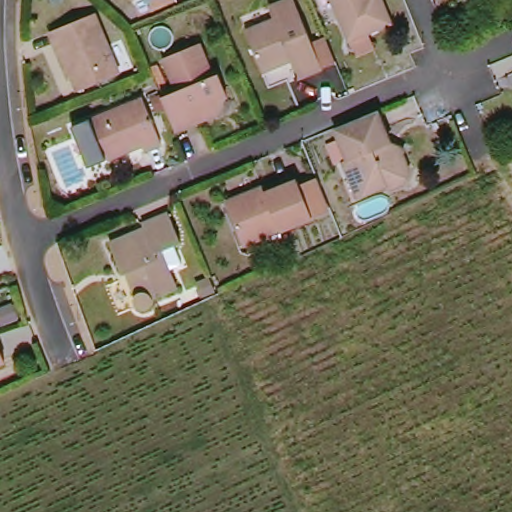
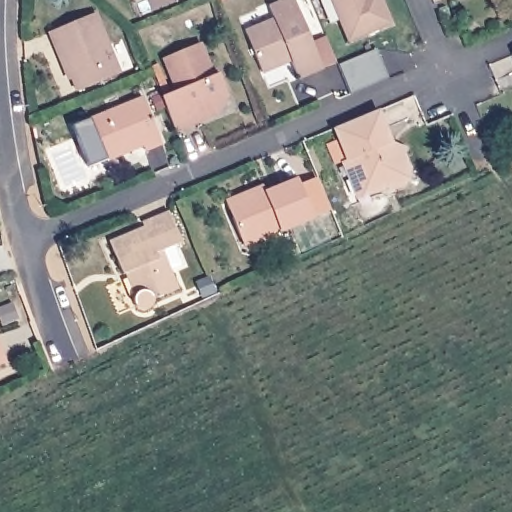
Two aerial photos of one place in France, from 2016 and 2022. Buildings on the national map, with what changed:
unchanged [(299,78),(290,58),(285,60),(286,62),(262,72),(246,31),(275,19),(270,7),(287,0),(295,0),(312,43),(325,38),(336,63),(322,69),(299,78)]
unchanged [(369,32),(375,47),(356,55),(333,0),(382,0),(392,23),(369,32)]
unchanged [(120,73),(77,91),(59,46),(56,47),(50,32),(95,13),(120,73)]
unchanged [(232,95),(216,102),(221,115),(180,131),(166,97),(182,91),(169,58),(205,43),(217,76),(224,74),(232,95)]
unchanged [(89,167),(72,126),(143,97),(162,144),(146,151),(91,173),(89,167)]
unchanged [(404,184),(389,190),(387,185),(367,194),(359,175),(350,179),(343,162),(348,160),(335,128),(377,110),(391,143),(405,149),(402,154),(410,170),(404,184)]
unchanged [(326,212),(280,231),(277,224),(260,231),(263,238),(244,245),(227,202),(264,187),(266,193),(297,180),(300,186),(314,180),(326,212)]
unchanged [(182,289),(157,299),(158,300),(158,302),(157,303),(157,305),(156,306),(155,307),(154,308),(152,309),(151,309),(150,310),(148,309),(147,309),(145,309),(144,309),(142,308),(141,307),(140,306),(140,305),(139,303),(139,302),(139,300),(139,299),(140,297),(140,296),(141,295),(142,294),(135,277),(136,276),(135,272),(129,274),(115,242),(150,228),(147,223),(174,212),(186,243),(161,253),(163,259),(168,256),(182,289)]
unchanged [(0,364),(0,349),(5,362),(0,364)]

